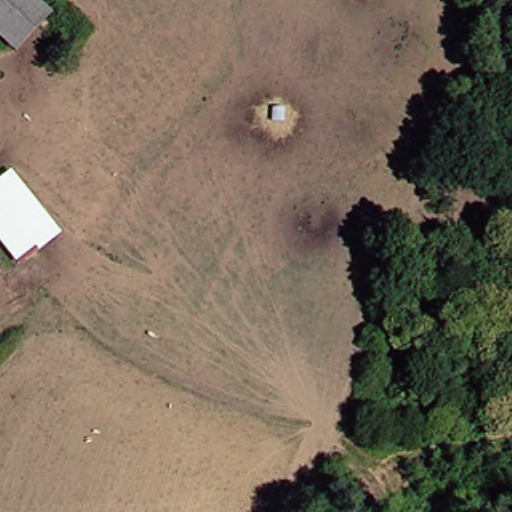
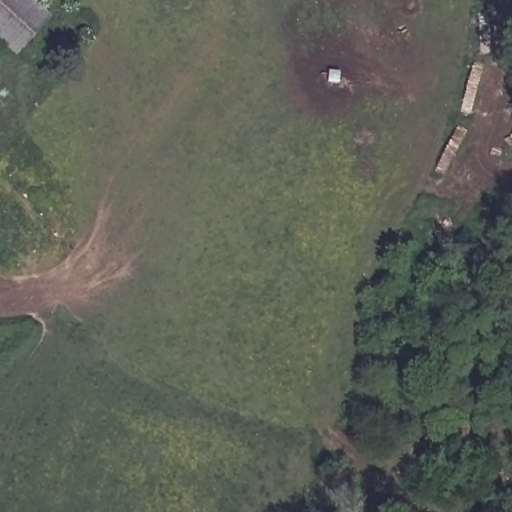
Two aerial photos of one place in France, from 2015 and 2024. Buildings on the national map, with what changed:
unchanged [(0,51),(0,0),(22,0),(40,16),(5,55),(0,51)]
new [(0,180),(11,172),(61,235),(37,254),(35,249),(16,263),(0,244),(0,180)]

